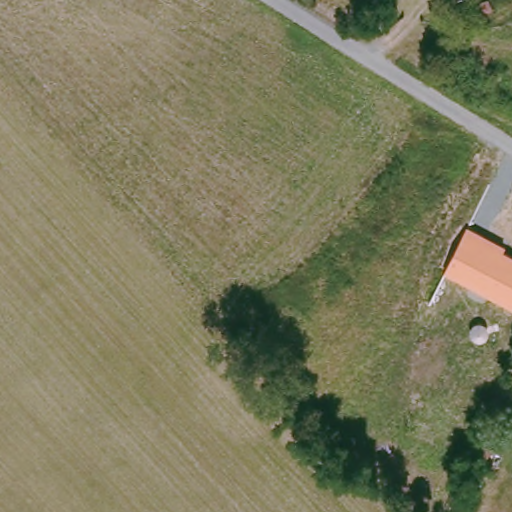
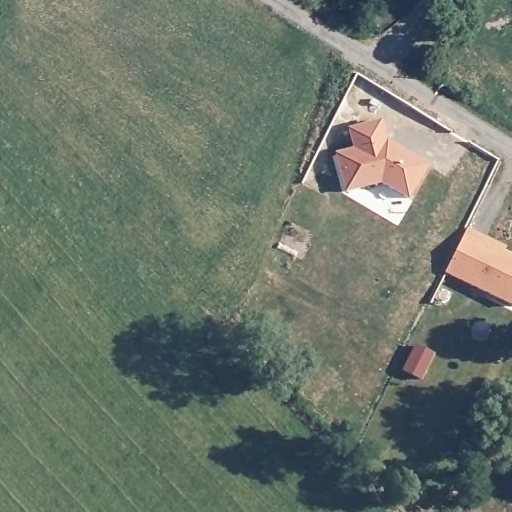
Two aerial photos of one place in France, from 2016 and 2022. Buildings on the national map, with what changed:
new [(380,181),(346,192),(335,152),(352,149),(348,128),(382,119),(387,139),(428,164),(408,200),(380,181)]
unchanged [(507,247),(505,251),(512,255),(512,308),(443,274),(468,227),(507,247)]

